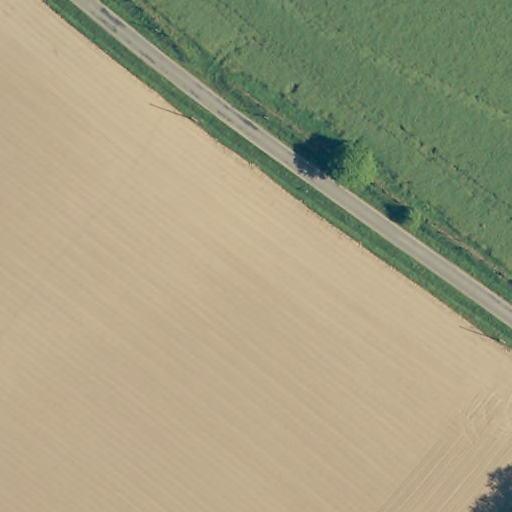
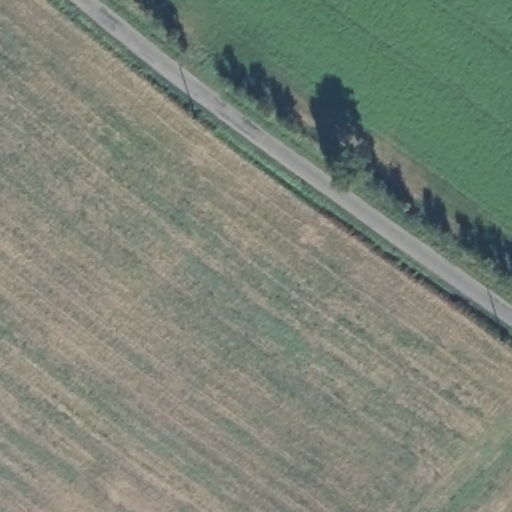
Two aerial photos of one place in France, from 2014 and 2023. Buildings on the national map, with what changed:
[]

